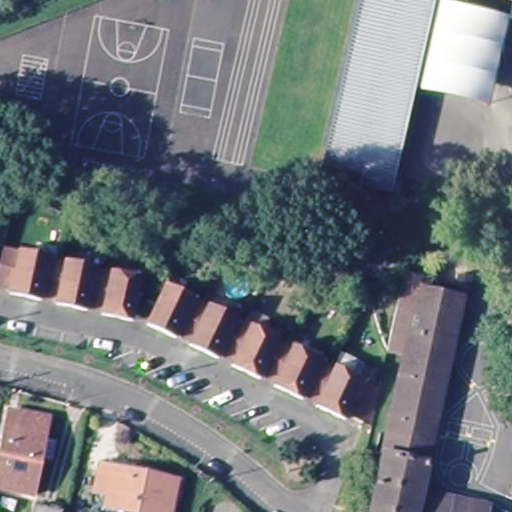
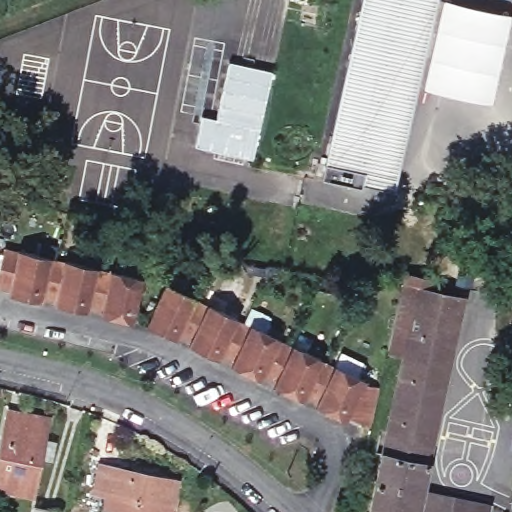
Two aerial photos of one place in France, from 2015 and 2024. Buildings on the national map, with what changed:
unchanged [(396,189),(365,181),(363,185),(323,175),(363,0),(440,0),(396,189)]
unchanged [(495,105),(424,89),(444,0),(445,0),(512,15),(512,29),(495,105)]
new [(200,115),(215,117),(227,61),(272,71),(252,160),(194,146),(200,115)]
unchanged [(15,298),(16,292),(0,288),(0,286),(7,252),(23,256),(24,252),(43,256),(42,260),(54,263),(45,298),(44,304),(15,298)]
unchanged [(90,315),(61,308),(62,302),(45,298),(54,263),(69,266),(70,262),(89,267),(88,270),(100,273),(91,308),(90,315)]
unchanged [(107,318),(109,313),(91,308),(100,273),(115,276),(115,273),(135,277),(134,281),(145,283),(136,325),(107,318)]
unchanged [(396,296),(399,282),(417,286),(427,288),(425,296),(425,300),(458,307),(415,498),(478,512),(366,512),(399,361),(382,358),(396,296)]
unchanged [(166,331),(164,336),(139,323),(141,318),(138,316),(154,286),(164,291),(166,286),(185,295),(182,299),(195,305),(180,337),(166,331)]
unchanged [(195,305),(208,312),(210,307),(227,315),(225,319),(235,325),(220,356),(205,349),(202,354),(180,343),(182,338),(180,337),(195,305)]
unchanged [(235,325),(250,332),(252,328),(270,336),(268,340),(277,344),(262,377),(248,370),(246,375),(220,363),(222,357),(220,356),(235,325)]
unchanged [(277,344),(294,352),(296,348),(313,356),(311,360),(318,364),(303,397),(290,391),(289,395),(262,383),(265,378),(262,377),(277,344)]
unchanged [(318,364),(335,372),(337,367),(355,376),(352,380),(368,388),(360,425),(333,412),(331,416),(304,403),(306,398),(303,397),(318,364)]
unchanged [(39,439),(50,442),(45,467),(34,464),(27,495),(0,489),(0,430),(4,413),(42,421),(39,439)]
unchanged [(133,512),(112,507),(115,495),(101,492),(106,465),(182,482),(177,512),(133,512)]
unchanged [(55,512),(30,512),(31,506),(55,511),(55,512)]

